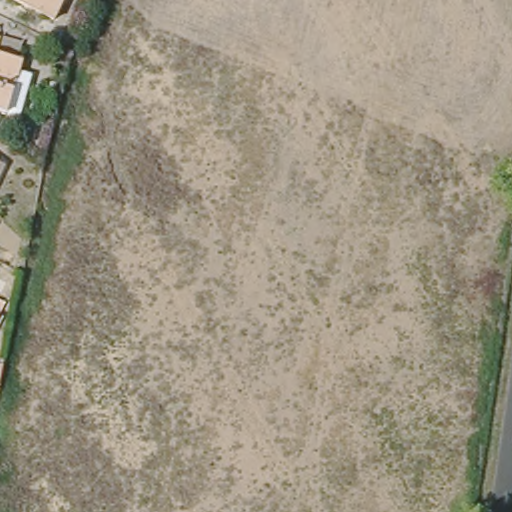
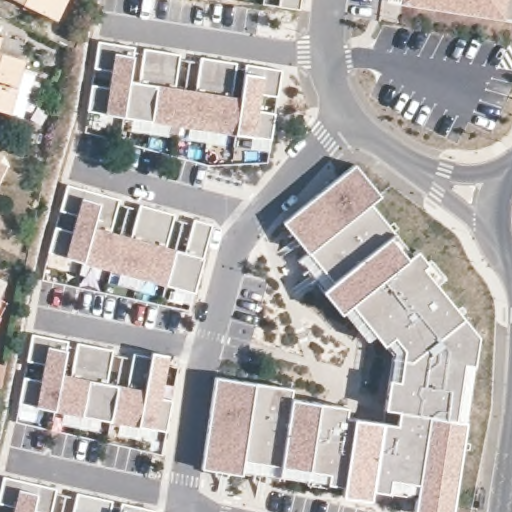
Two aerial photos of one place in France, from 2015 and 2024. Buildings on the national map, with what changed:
unchanged [(57,19),(16,0),(66,0),(57,19)]
new [(281,0),(301,0),(300,10),(280,7),(281,0)]
new [(386,0),(512,0),(512,21),(386,2),(386,0)]
unchanged [(26,117),(15,114),(0,109),(0,36),(29,44),(25,59),(30,60),(22,88),(33,91),(26,117)]
new [(272,139),(256,135),(256,137),(235,134),(235,131),(124,117),(106,113),(106,112),(88,112),(99,41),(180,52),(179,57),(200,58),(200,55),(282,67),(272,139)]
new [(371,202),(397,233),(392,237),(407,254),(415,248),(429,265),(425,267),(476,331),(474,367),(464,365),(456,418),(467,420),(452,512),(411,512),(415,497),(370,490),(368,501),(342,497),(343,486),(277,476),(240,474),(200,471),(213,377),(292,388),(291,398),(345,406),(343,416),(383,421),(393,360),(373,337),(367,341),(299,264),(310,254),(283,222),(356,162),(382,192),(371,202)]
unchanged [(4,170),(0,178),(0,168),(4,170)]
new [(119,199),(118,204),(138,207),(139,204),(175,213),(174,217),(191,221),(193,217),(213,223),(204,258),(195,291),(166,283),(83,262),(66,257),(64,267),(46,263),(60,210),(67,185),(119,199)]
new [(168,362),(179,366),(167,430),(157,425),(156,429),(55,411),(36,407),(37,402),(20,402),(28,359),(32,332),(115,348),(114,353),(132,357),(133,353),(151,355),(152,351),(170,356),(168,362)]
unchanged [(6,365),(2,388),(0,387),(0,363),(6,365)]
new [(57,487),(57,490),(76,492),(112,500),(110,512),(0,512),(0,492),(4,476),(57,487)]
new [(119,512),(122,501),(158,508),(157,512),(119,512)]

